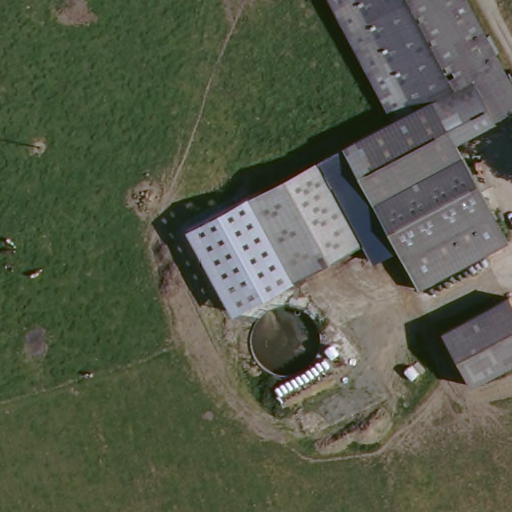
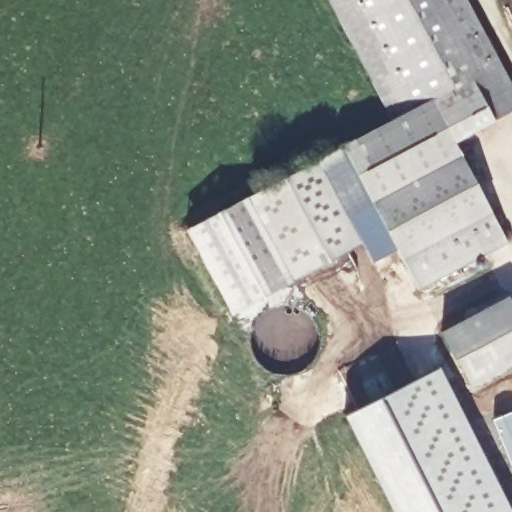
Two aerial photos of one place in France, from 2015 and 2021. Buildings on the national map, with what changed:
unchanged [(342,145),(408,110),(348,0),(466,0),(498,63),(475,80),(494,122),(454,143),(503,238),(418,283),(396,248),(375,261),(362,239),(292,281),(247,195),(342,145)]
new [(232,314),(186,228),(247,195),(292,281),(232,314)]
unchanged [(446,326),(512,293),(512,361),(474,379),(446,326)]
new [(512,512),(393,512),(345,416),(439,366),(512,512)]

